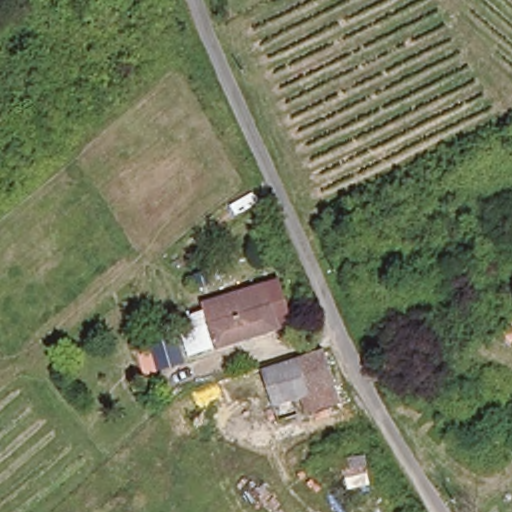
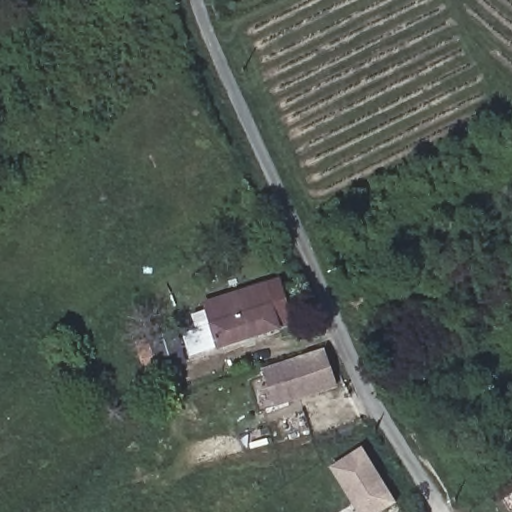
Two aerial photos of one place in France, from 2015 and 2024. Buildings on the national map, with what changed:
unchanged [(218,321),(237,315),(229,293),(261,282),(270,304),(281,300),(290,324),(227,345),(218,321)]
unchanged [(302,402),(274,412),(263,376),(323,357),(334,391),(302,402)]
new [(356,512),(329,468),(360,448),(394,503),(380,512),(356,512)]

